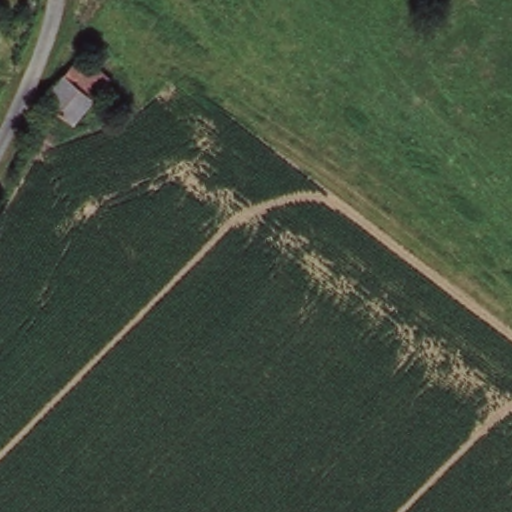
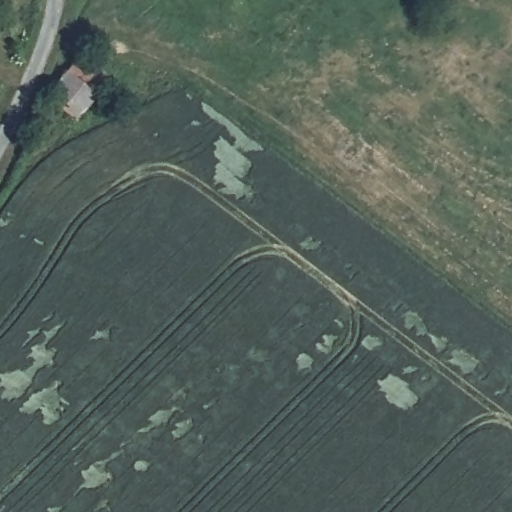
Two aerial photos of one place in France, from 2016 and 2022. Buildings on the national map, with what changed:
unchanged [(81,55),(111,80),(76,124),(44,98),(81,55)]

